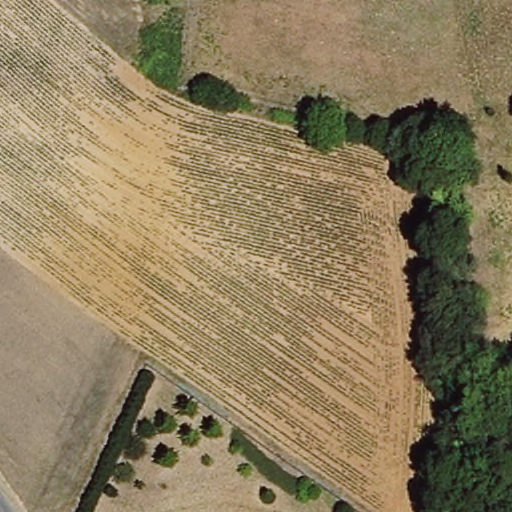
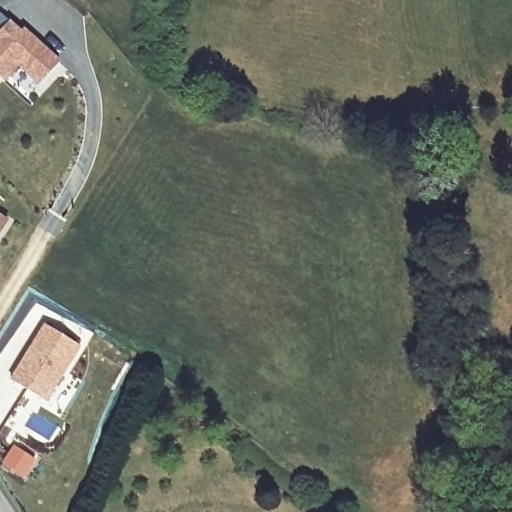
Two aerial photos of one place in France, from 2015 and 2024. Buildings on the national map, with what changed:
new [(23,29),(26,26),(36,36),(63,60),(43,80),(21,61),(6,77),(0,71),(0,32),(12,19),(23,29)]
new [(10,220),(0,236),(0,214),(10,220)]
new [(50,324),(85,346),(51,401),(16,379),(50,324)]

